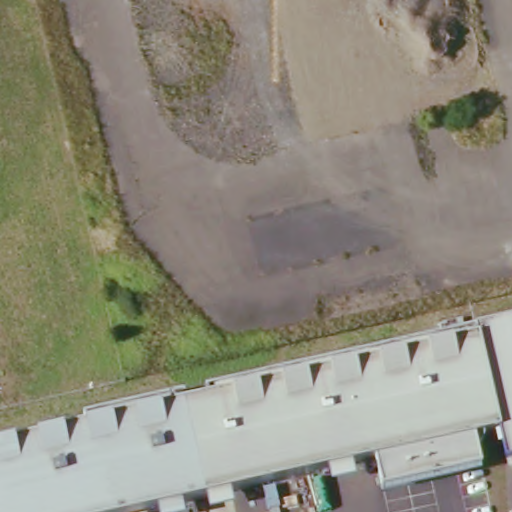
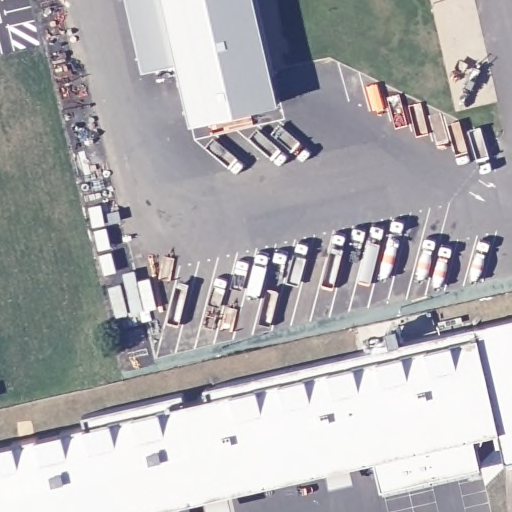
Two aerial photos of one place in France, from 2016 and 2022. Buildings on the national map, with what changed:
new [(281,102),(192,122),(179,65),(143,72),(126,0),(258,0),(281,102)]
unchanged [(189,398),(192,410),(215,405),(214,395),(512,327),(512,468),(505,439),(483,443),(488,473),(389,496),(382,467),(176,512),(119,512),(99,418),(189,398)]
unchanged [(92,432),(90,421),(99,418),(119,512),(0,512),(0,453),(92,432)]

